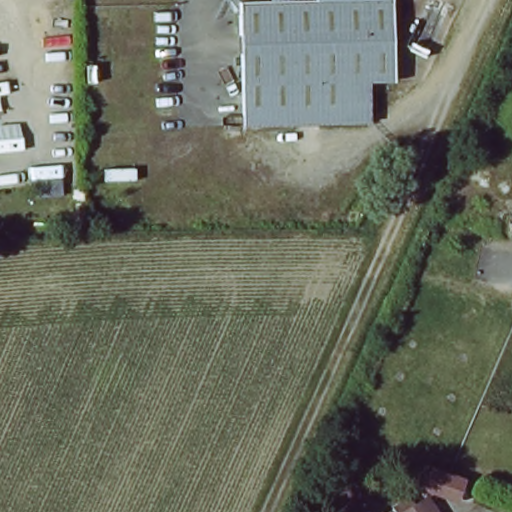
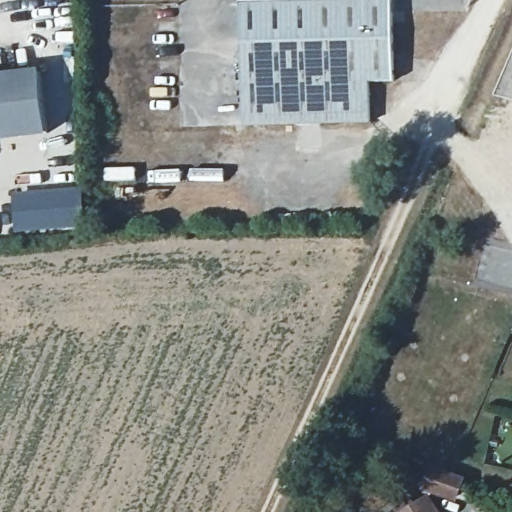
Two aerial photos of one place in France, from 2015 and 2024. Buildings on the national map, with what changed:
unchanged [(374,82),(375,120),(245,125),(239,3),(324,0),(391,0),(395,81),(374,82)]
new [(48,136),(0,142),(0,74),(41,69),(48,136)]
new [(41,187),(85,186),(88,228),(15,234),(11,190),(41,187)]
unchanged [(434,462),(468,476),(457,505),(452,505),(450,512),(398,512),(421,497),(434,462)]

